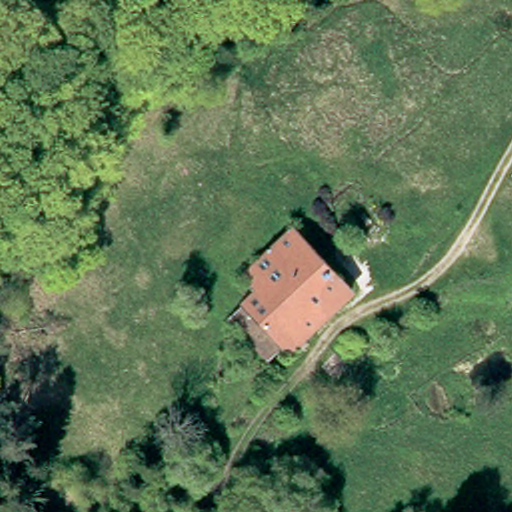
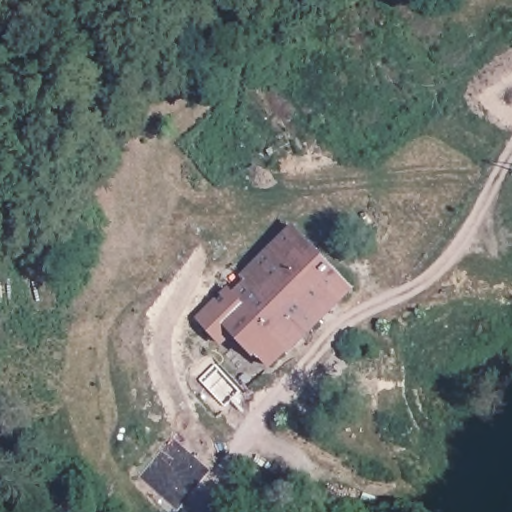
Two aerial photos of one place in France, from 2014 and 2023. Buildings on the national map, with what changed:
unchanged [(353,285),(285,348),(237,300),(255,283),(243,271),(297,222),(353,285)]
new [(265,367),(234,335),(222,345),(194,316),(243,271),(255,283),(237,300),(285,348),(265,367)]

